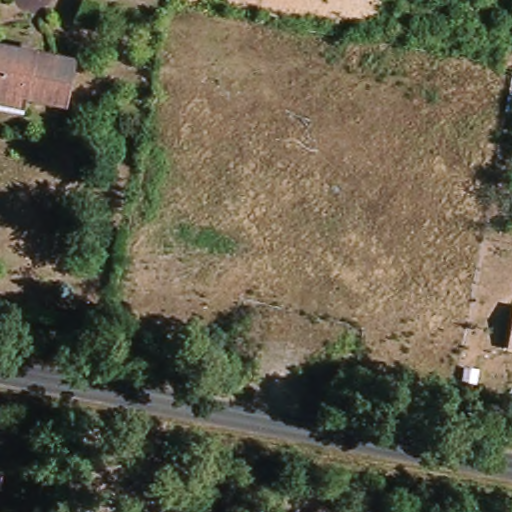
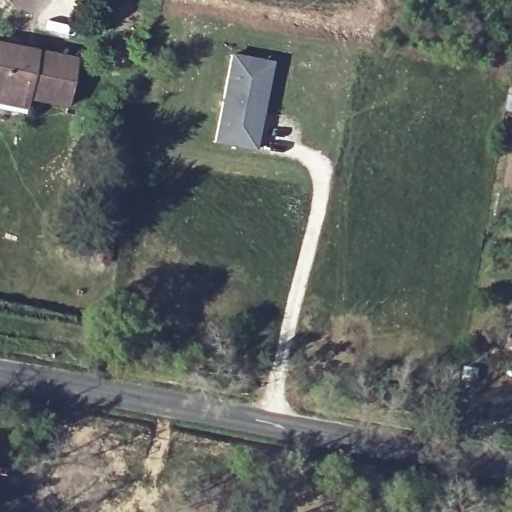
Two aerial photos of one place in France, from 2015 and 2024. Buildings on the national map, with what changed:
unchanged [(0,116),(0,45),(74,60),(65,109),(27,100),(24,120),(0,116)]
new [(231,55),(271,63),(254,151),(213,144),(231,55)]
unchanged [(512,331),(512,348),(509,347),(512,331)]

